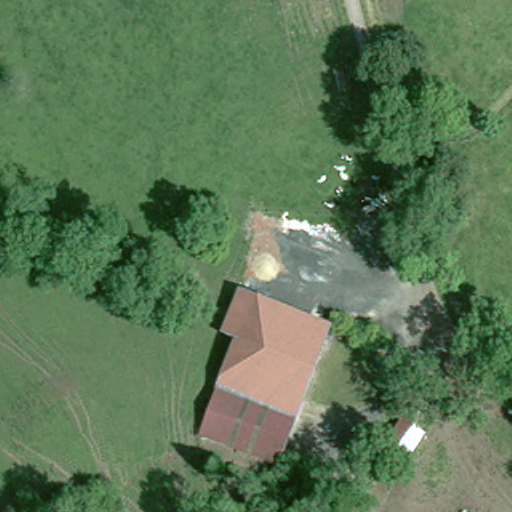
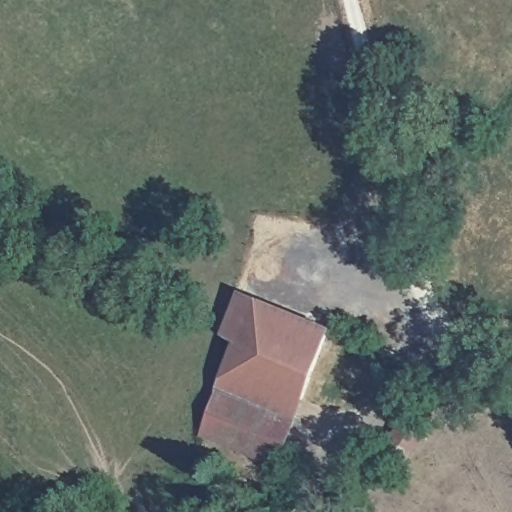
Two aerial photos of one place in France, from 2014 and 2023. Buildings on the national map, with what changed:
unchanged [(214,388),(234,340),(223,336),(232,315),(223,312),(224,310),(232,294),(300,318),(333,331),(297,423),(214,388)]
unchanged [(200,421),(214,388),(297,423),(282,465),(200,431),(200,421)]
unchanged [(422,428),(400,460),(379,445),(399,412),(422,428)]

